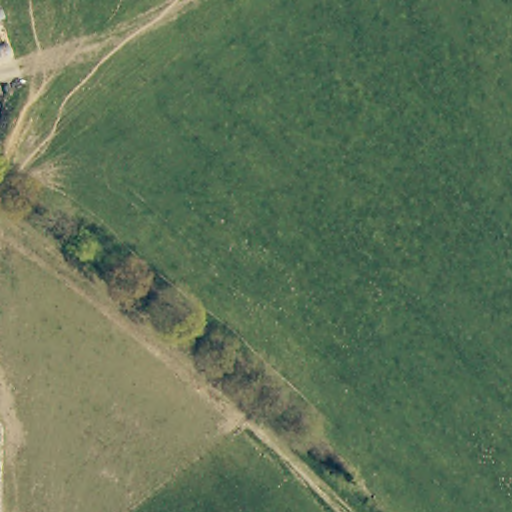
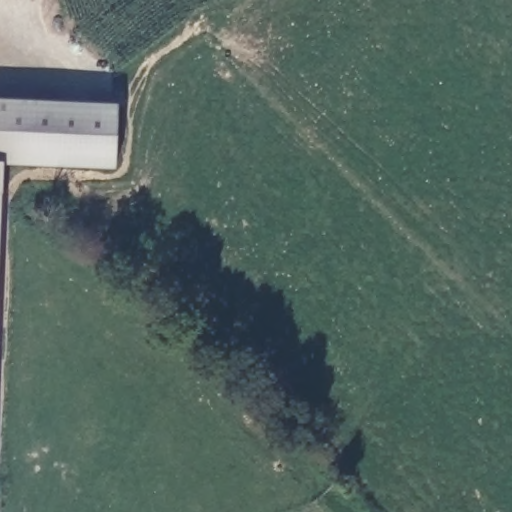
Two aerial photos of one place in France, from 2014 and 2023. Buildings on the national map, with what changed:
new [(117,104),(114,169),(0,164),(0,100),(117,104)]
unchanged [(2,194),(0,233),(0,194),(2,194)]

